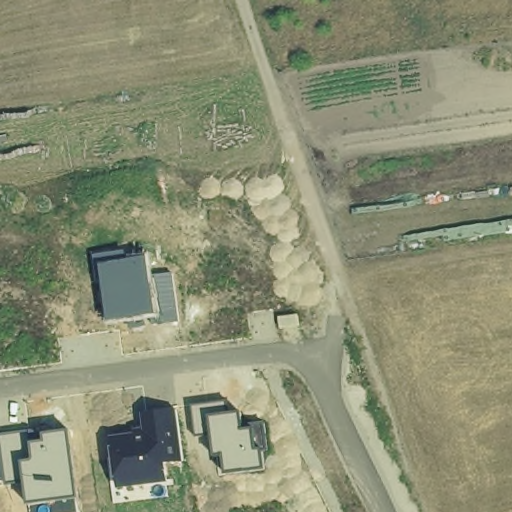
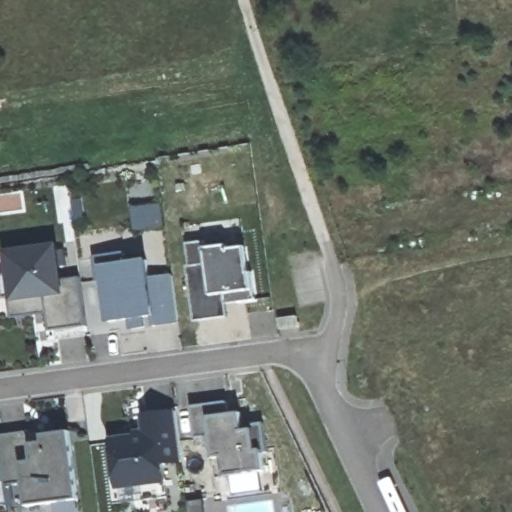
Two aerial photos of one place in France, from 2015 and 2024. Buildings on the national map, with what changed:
new [(225,316),(193,320),(187,266),(189,266),(187,242),(203,240),(204,248),(227,246),(227,249),(245,247),(248,272),(249,272),(251,288),(254,300),(225,302),(225,316)]
new [(47,312),(12,317),(11,302),(5,250),(57,245),(62,280),(80,277),(86,325),(49,331),(47,312)]
unchanged [(126,252),(128,261),(147,259),(147,255),(151,256),(153,276),(173,274),(179,322),(153,326),(153,321),(145,321),(145,328),(130,330),(130,323),(107,327),(107,322),(102,283),(96,283),(94,257),(126,252)]
unchanged [(192,406),(227,402),(229,414),(240,413),(241,425),(264,422),(267,451),(263,452),(265,470),(225,474),(223,457),(214,457),(211,435),(196,437),(192,406)]
unchanged [(134,434),(133,428),(143,428),(142,414),(177,410),(183,462),(166,464),(167,473),(168,483),(117,489),(115,479),(110,447),(109,437),(134,434)]
unchanged [(44,435),(70,432),(78,498),(28,506),(25,482),(5,486),(4,481),(0,482),(0,435),(32,431),(44,435)]

